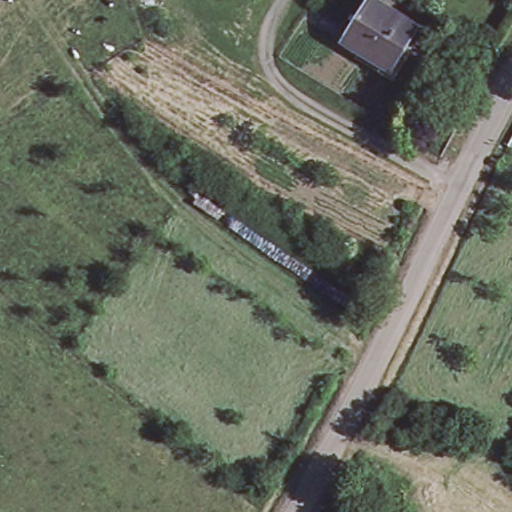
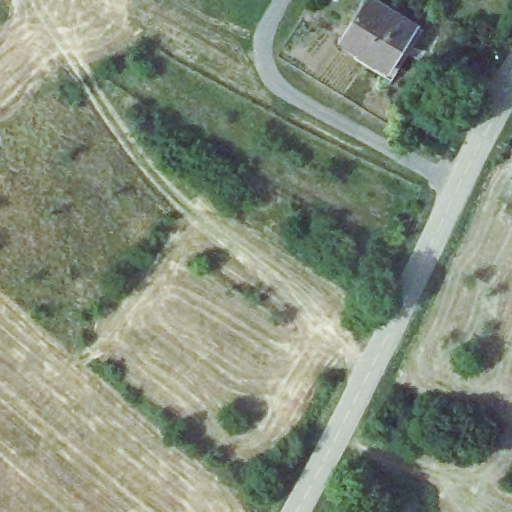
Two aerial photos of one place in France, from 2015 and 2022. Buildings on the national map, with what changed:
unchanged [(418,24),(390,69),(345,41),(370,0),(379,0),(418,24)]

